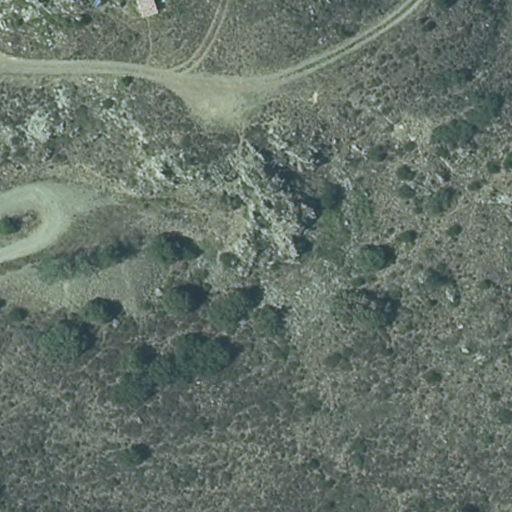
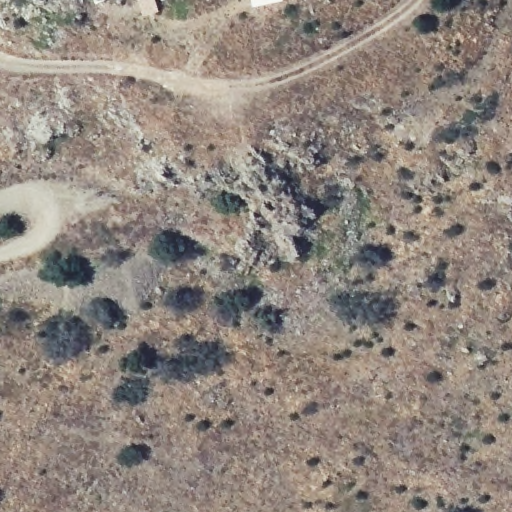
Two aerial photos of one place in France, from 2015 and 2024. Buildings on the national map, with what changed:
unchanged [(165,15),(145,18),(141,0),(164,0),(165,15)]

